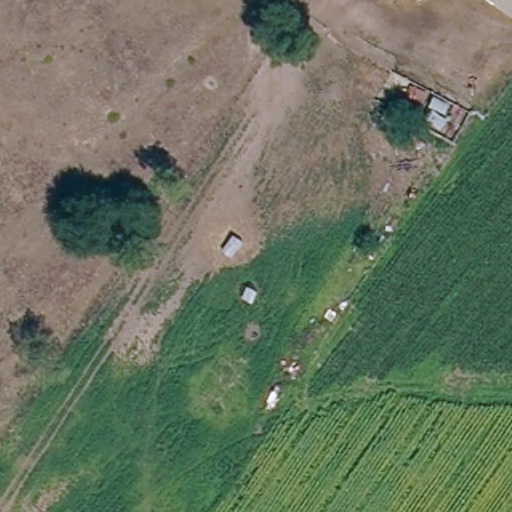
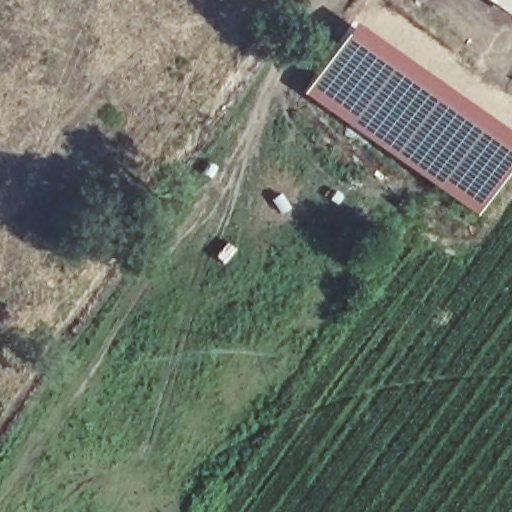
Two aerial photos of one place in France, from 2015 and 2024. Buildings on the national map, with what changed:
unchanged [(512,24),(480,0),(512,0),(512,24)]
new [(512,132),(512,138),(509,142),(362,39),(367,31),(512,132)]
new [(362,39),(509,142),(469,199),(322,95),(362,39)]

